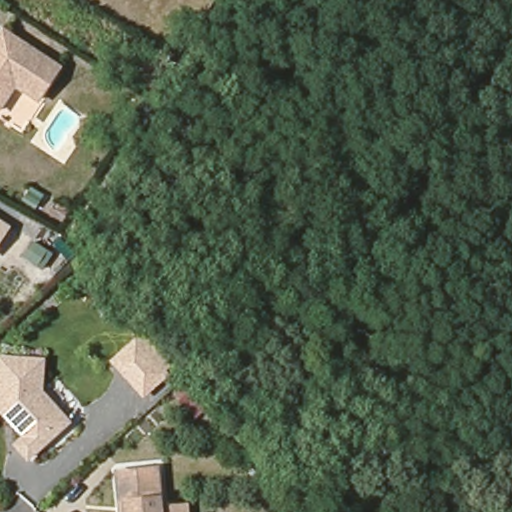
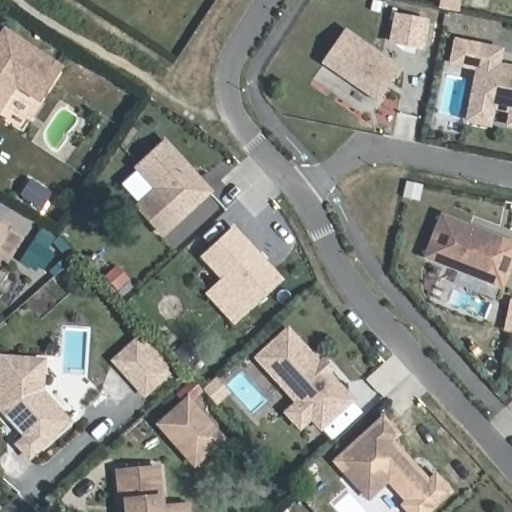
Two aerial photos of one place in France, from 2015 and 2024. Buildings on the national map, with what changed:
new [(428,24),(425,24),(425,26),(427,27),(423,51),(387,44),(393,12),(429,19),(428,24)]
new [(377,103),(321,63),(344,29),(402,68),(377,103)]
unchanged [(39,98),(15,83),(0,105),(0,37),(5,30),(60,66),(39,98)]
new [(465,123),(480,44),(503,48),(500,65),(512,66),(512,128),(505,126),(508,114),(495,111),(491,128),(465,123)]
new [(162,240),(134,206),(151,189),(134,167),(166,138),(214,192),(162,240)]
new [(486,283),(423,259),(441,213),(505,238),(486,283)]
unchanged [(0,218),(12,226),(0,244),(0,218)]
new [(249,311),(200,257),(234,225),(282,279),(249,311)]
new [(120,267),(134,282),(120,294),(107,277),(120,267)]
new [(355,400),(318,431),(310,421),(299,431),(282,413),(293,403),(254,358),(290,327),(318,360),(323,356),(335,369),(331,373),(355,400)]
unchanged [(142,399),(109,360),(139,336),(170,376),(142,399)]
unchanged [(21,438),(0,413),(0,360),(39,364),(36,394),(65,424),(24,459),(12,446),(21,438)]
new [(190,403),(226,442),(199,467),(163,428),(190,403)]
new [(431,512),(405,512),(401,507),(405,503),(388,484),(368,502),(333,461),(384,415),(401,436),(395,441),(429,478),(435,472),(453,492),(431,512)]
unchanged [(182,512),(117,512),(114,470),(154,467),(157,507),(170,506),(182,505),(182,512)]

